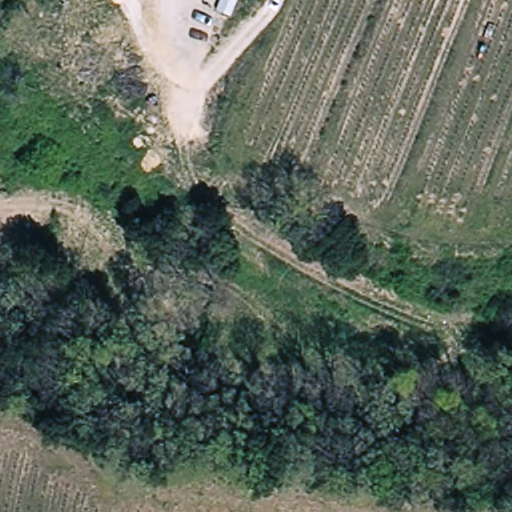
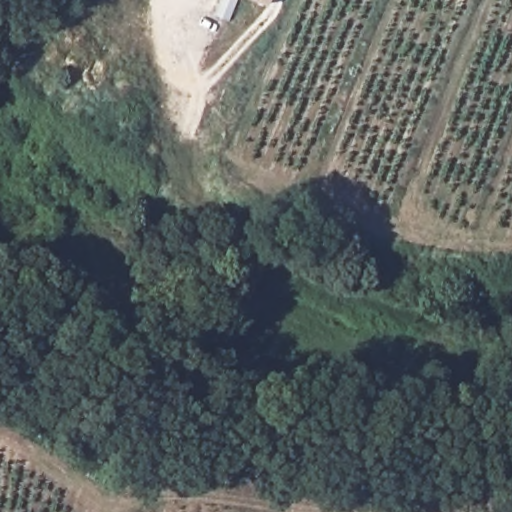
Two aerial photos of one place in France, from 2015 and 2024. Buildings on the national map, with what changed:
unchanged [(268,4),(258,0),(270,0),(268,4)]

